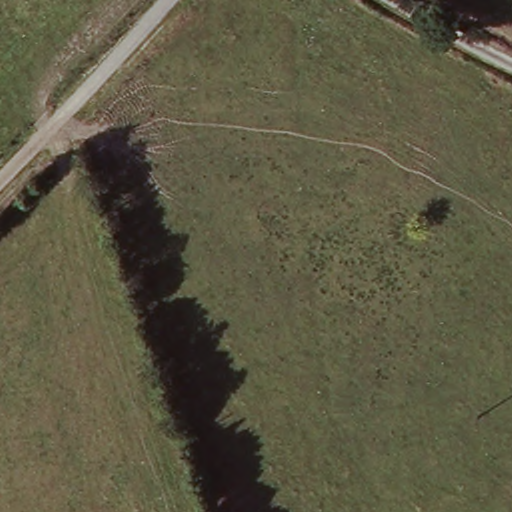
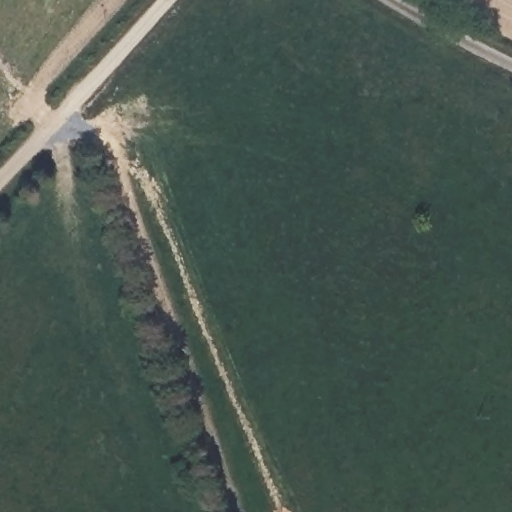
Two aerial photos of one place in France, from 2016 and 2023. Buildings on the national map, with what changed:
[]

